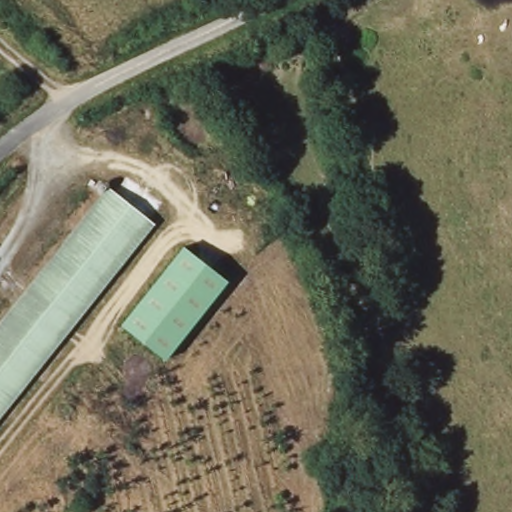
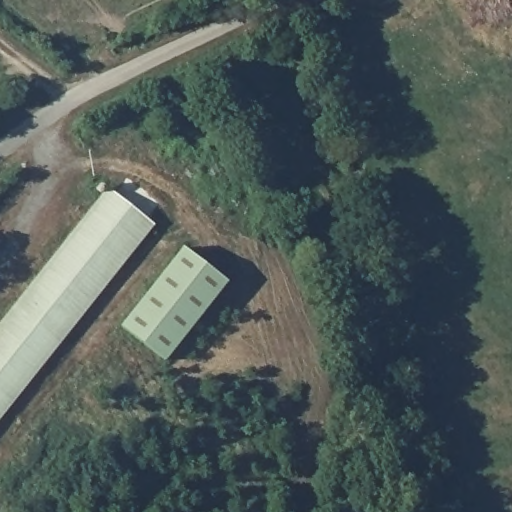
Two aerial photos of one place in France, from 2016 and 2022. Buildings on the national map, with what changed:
unchanged [(106,189),(154,226),(0,418),(0,323),(106,189)]
unchanged [(226,282),(163,360),(120,324),(182,247),(226,282)]

